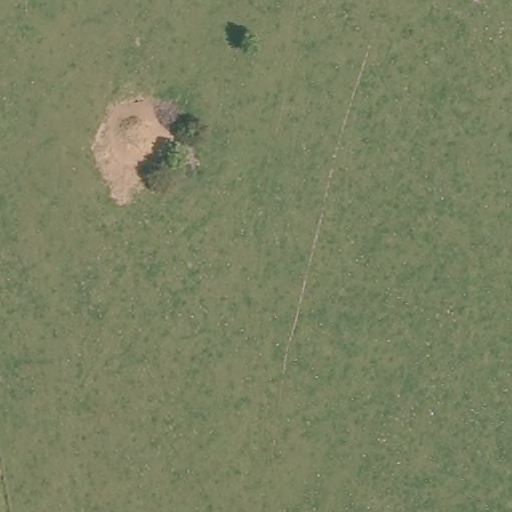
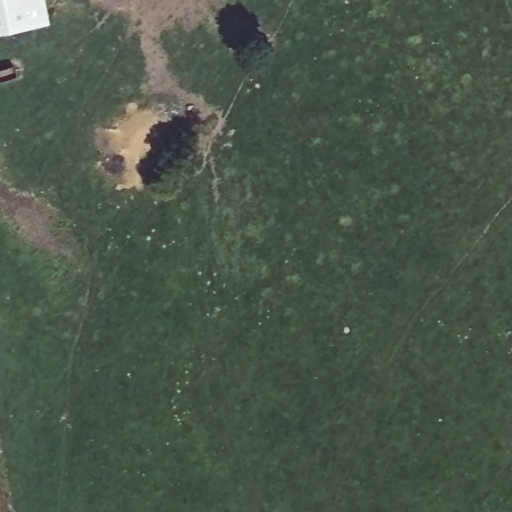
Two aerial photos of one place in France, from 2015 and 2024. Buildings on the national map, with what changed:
new [(52,17),(0,28),(0,0),(49,0),(52,17)]

